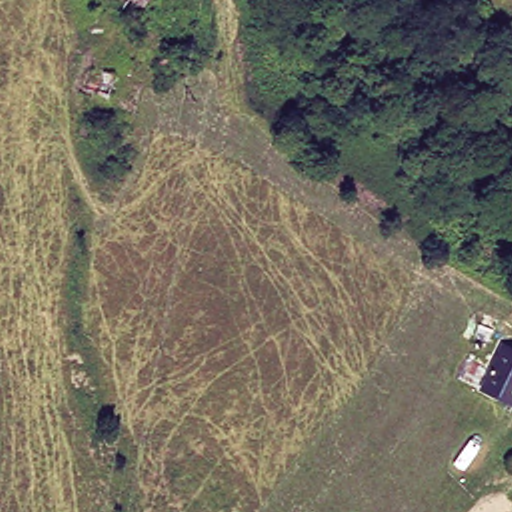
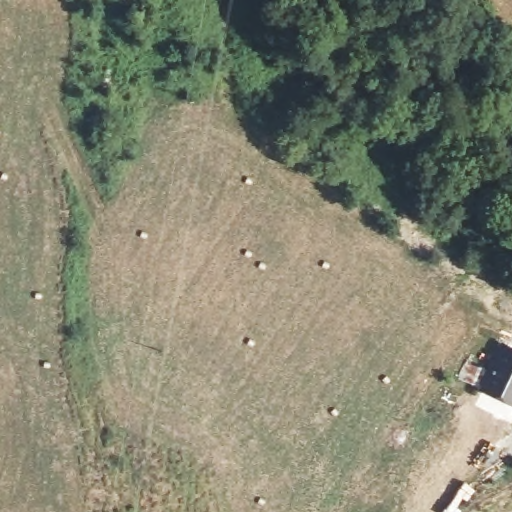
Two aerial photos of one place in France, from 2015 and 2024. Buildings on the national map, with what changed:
unchanged [(132,0),(156,0),(149,9),(132,0)]
unchanged [(113,102),(91,95),(94,70),(118,82),(113,102)]
unchanged [(489,380),(512,344),(512,396),(489,380)]

